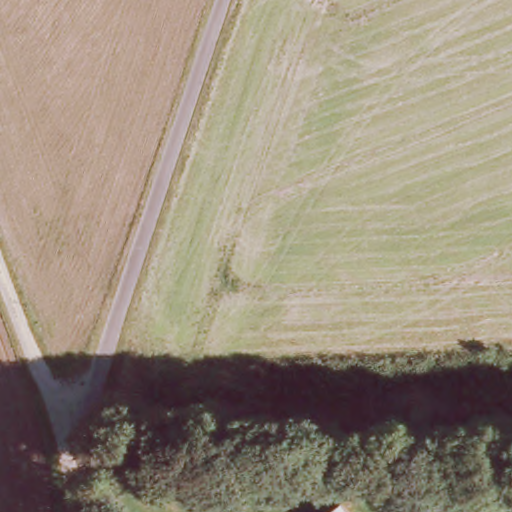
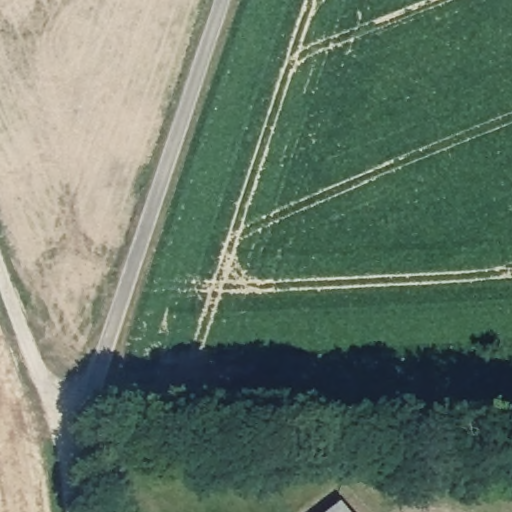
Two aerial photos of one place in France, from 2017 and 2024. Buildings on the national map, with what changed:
unchanged [(341,502),(348,512),(329,512),(341,502)]

